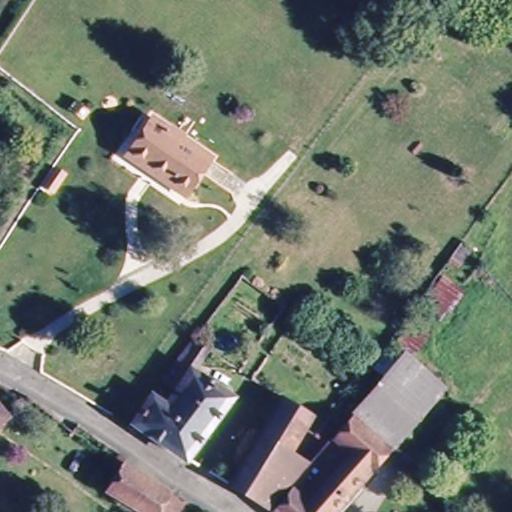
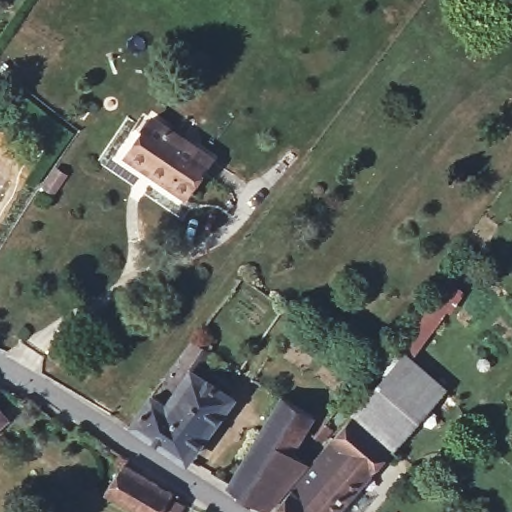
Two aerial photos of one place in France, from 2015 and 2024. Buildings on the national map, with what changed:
unchanged [(187,197),(126,157),(150,117),(212,156),(187,197)]
unchanged [(369,363),(442,271),(467,292),(413,360),(405,351),(383,375),(369,363)]
unchanged [(207,382),(189,407),(167,392),(198,350),(228,369),(216,388),(207,382)]
unchanged [(348,423),(405,358),(443,388),(388,456),(348,423)]
unchanged [(141,432),(157,407),(179,422),(189,407),(207,382),(216,388),(239,405),(197,470),(141,432)]
unchanged [(227,492),(282,403),(309,422),(290,455),(298,461),(271,512),(262,512),(227,492)]
unchanged [(0,420),(0,409),(6,416),(0,420)]
unchanged [(348,423),(388,456),(342,512),(272,512),(348,423)]
unchanged [(159,512),(136,512),(104,491),(119,466),(167,499),(159,512)]

